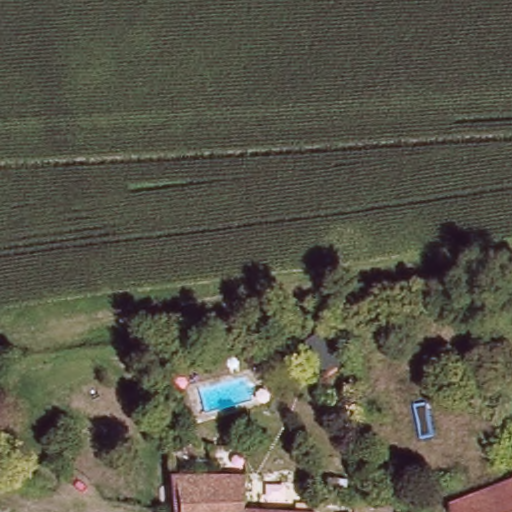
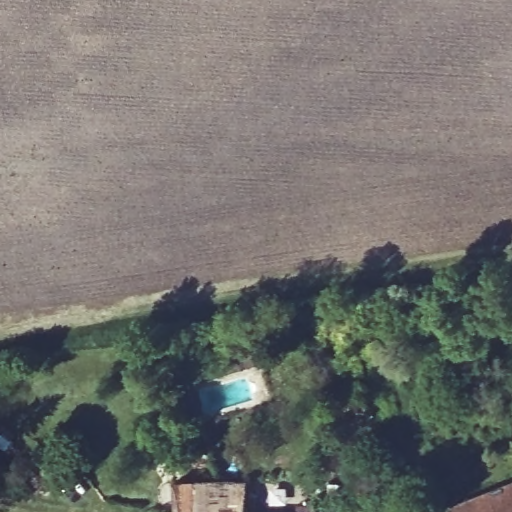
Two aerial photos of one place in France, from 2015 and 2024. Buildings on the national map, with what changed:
unchanged [(451,512),(448,504),(512,479),(512,512),(451,512)]
unchanged [(193,485),(242,484),(242,512),(175,512),(173,482),(192,481),(193,485)]

